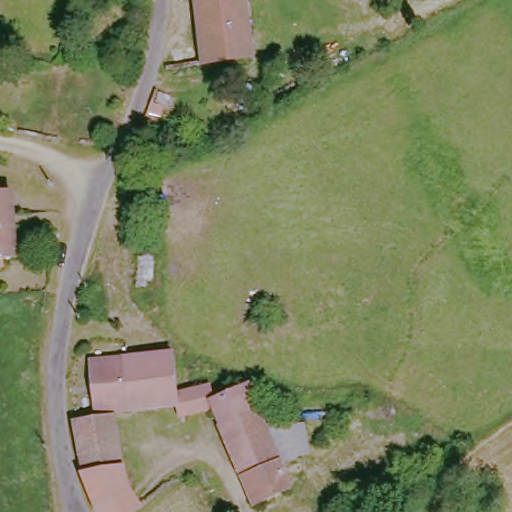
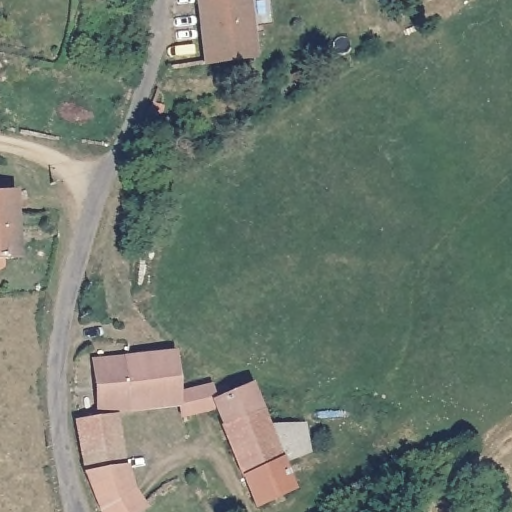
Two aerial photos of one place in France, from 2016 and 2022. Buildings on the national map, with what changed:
unchanged [(246,62),(194,67),(187,0),(239,0),(246,62)]
unchanged [(0,254),(0,188),(10,188),(14,253),(0,254)]
unchanged [(170,350),(172,390),(173,403),(125,406),(121,355),(167,350),(170,350)]
unchanged [(121,355),(125,406),(96,408),(92,357),(104,356),(121,355)]
unchanged [(208,375),(217,396),(206,400),(210,408),(181,417),(173,403),(172,390),(208,375)]
unchanged [(257,414),(262,427),(223,438),(210,408),(206,400),(217,396),(245,386),(257,414)]
unchanged [(257,414),(285,402),(296,430),(304,452),(277,465),(262,427),(257,414)]
unchanged [(89,510),(79,483),(66,418),(112,412),(124,481),(127,485),(89,510)]
unchanged [(251,502),(223,438),(262,427),(277,465),(287,490),(251,502)]
unchanged [(127,485),(139,501),(127,512),(90,512),(89,510),(127,485)]

